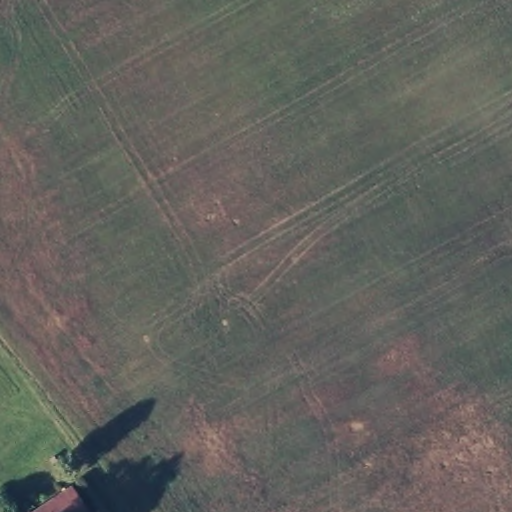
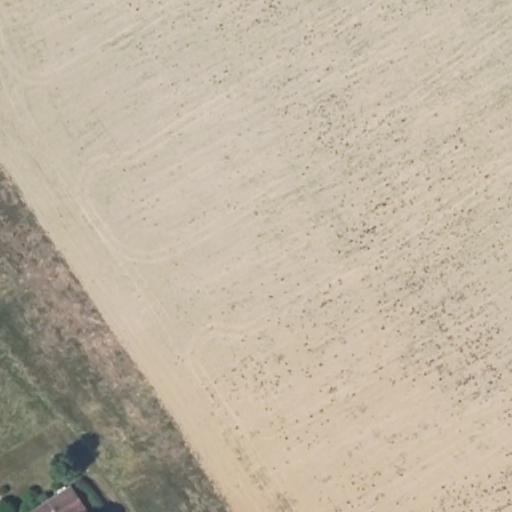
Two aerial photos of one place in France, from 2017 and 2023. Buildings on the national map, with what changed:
unchanged [(40,512),(72,491),(85,512),(40,512)]

